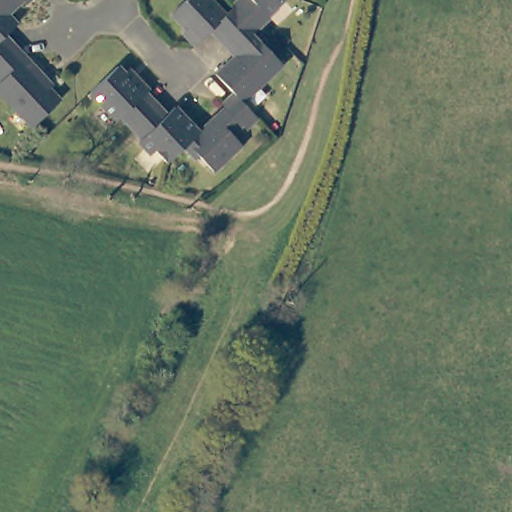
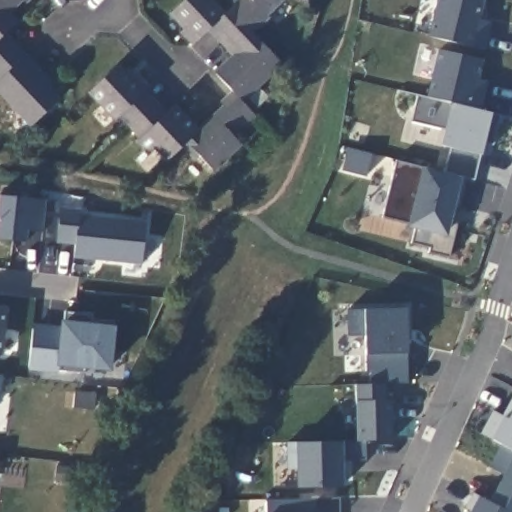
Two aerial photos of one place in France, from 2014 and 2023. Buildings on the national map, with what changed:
unchanged [(5,12),(15,22),(0,35),(0,0),(17,0),(5,12)]
unchanged [(23,1),(22,0),(24,0),(23,1)]
unchanged [(215,72),(233,53),(229,50),(232,47),(214,27),(210,27),(193,44),(181,31),(183,29),(169,14),(183,0),(213,0),(225,13),(233,4),(237,0),(279,0),(267,12),(270,15),(252,31),(282,63),(241,101),(236,95),(215,72)]
new [(480,20),(490,23),(483,52),(428,38),(436,0),(481,0),(484,1),(480,20)]
unchanged [(24,54),(45,76),(40,82),(56,100),(29,126),(0,95),(0,37),(20,58),(24,54)]
new [(479,80),(487,82),(477,109),(493,114),(501,117),(493,147),(485,145),(481,155),(473,182),(460,178),(451,221),(457,223),(449,257),(427,252),(429,247),(406,241),(411,225),(381,217),(396,162),(420,168),(443,173),(448,148),(441,146),(445,129),(410,121),(416,95),(428,98),(439,51),(483,61),(479,80)]
unchanged [(213,171),(198,155),(193,159),(181,147),(163,163),(151,150),(146,155),(135,142),(138,139),(117,116),(113,120),(88,92),(114,68),(127,82),(132,77),(144,91),(140,95),(161,118),(173,107),(196,132),(236,95),(241,101),(255,117),(245,127),(236,125),(231,134),(241,146),(213,171)]
new [(27,232),(26,241),(0,240),(0,196),(44,200),(41,232),(27,232)]
new [(141,264),(72,258),(73,244),(59,242),(61,208),(80,210),(80,215),(146,221),(141,264)]
new [(0,305),(5,305),(0,346),(0,305)]
new [(406,355),(406,383),(384,384),(384,400),(389,399),(391,440),(365,442),(365,461),(342,462),(342,487),(296,488),(295,469),(286,469),(285,445),(296,445),(342,442),(356,441),(354,386),(366,386),(365,357),(365,335),(348,336),(348,311),(365,310),(408,308),(406,355)]
new [(92,321),(113,323),(109,367),(85,365),(84,373),(29,368),(34,329),(61,332),(64,310),(92,313),(92,321)]
new [(490,441),(477,432),(489,408),(502,415),(512,397),(512,452),(490,441)]
new [(507,512),(471,512),(479,496),(507,512)]
new [(265,512),(265,501),(316,499),(316,512),(265,512)]

